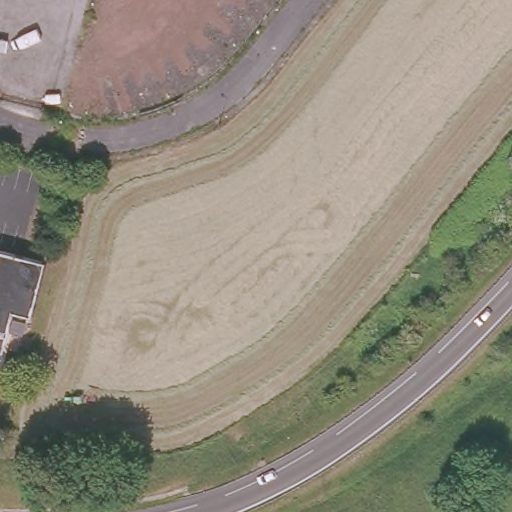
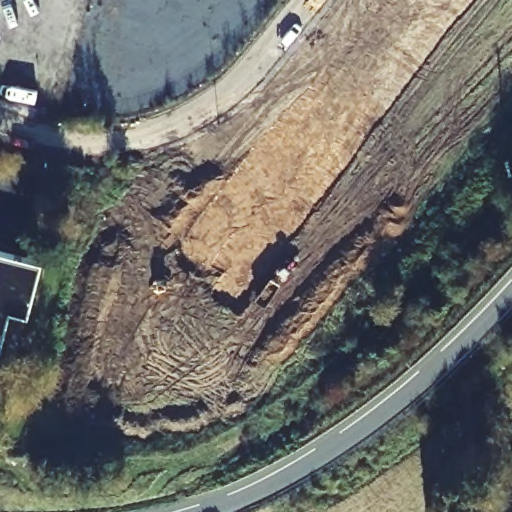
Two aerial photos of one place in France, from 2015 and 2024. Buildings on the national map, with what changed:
unchanged [(28,315),(12,310),(0,347),(0,248),(44,261),(28,315)]

